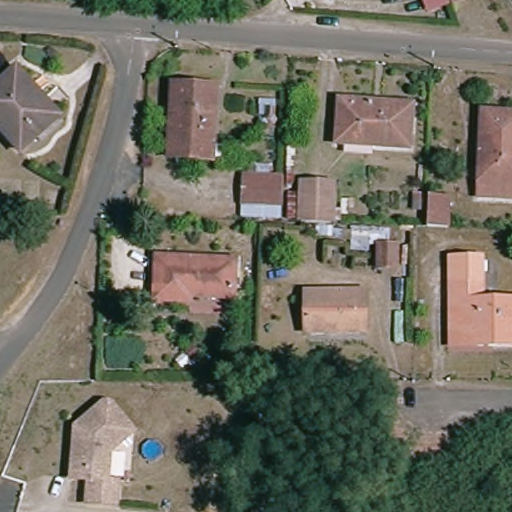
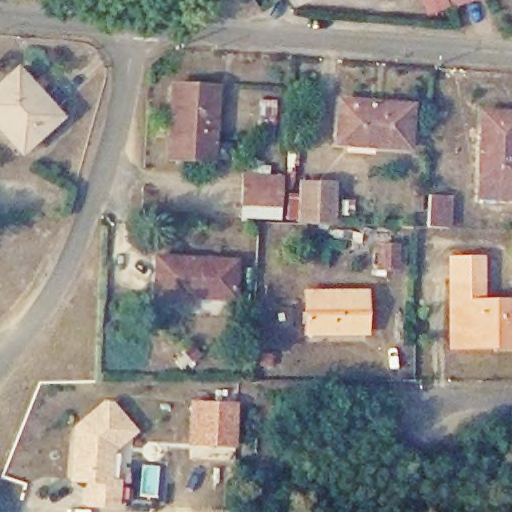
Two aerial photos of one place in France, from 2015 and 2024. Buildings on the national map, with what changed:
unchanged [(449,5),(447,0),(463,0),(449,5)]
unchanged [(59,120),(20,156),(0,134),(0,86),(16,72),(59,120)]
unchanged [(212,162),(168,161),(171,87),(216,89),(212,162)]
unchanged [(408,151),(335,147),(337,102),(412,107),(408,151)]
unchanged [(486,108),(512,110),(512,195),(481,194),(486,108)]
unchanged [(241,219),(241,206),(241,178),(281,180),(280,208),(279,222),(241,219)]
unchanged [(331,223),(299,222),(301,186),(333,186),(331,223)]
unchanged [(453,194),(453,224),(432,224),(434,193),(453,194)]
unchanged [(395,269),(378,270),(377,251),(395,251),(395,269)]
unchanged [(449,284),(448,258),(481,257),(482,283),(482,298),(512,298),(512,343),(461,344),(449,345),(449,302),(449,284)]
unchanged [(233,301),(189,300),(189,305),(154,304),(155,260),(234,265),(233,301)]
unchanged [(366,295),(366,335),(305,336),(305,295),(366,295)]
new [(188,401),(237,402),(236,447),(188,445),(188,401)]
unchanged [(110,505),(81,502),(84,478),(66,477),(71,426),(99,402),(106,403),(129,430),(116,441),(113,480),(110,505)]

